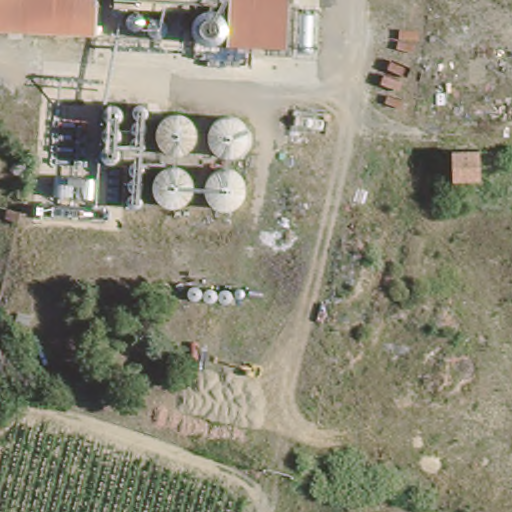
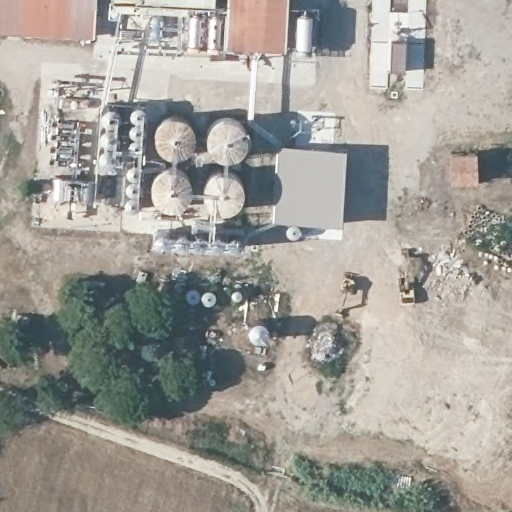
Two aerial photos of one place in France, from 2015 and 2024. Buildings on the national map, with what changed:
unchanged [(0,29),(0,0),(73,0),(70,32),(0,29)]
unchanged [(286,46),(226,42),(228,0),(249,0),(289,2),(286,46)]
unchanged [(249,0),(289,0),(289,2),(249,0)]
unchanged [(206,7),(211,9),(214,12),(217,16),(218,21),(219,26),(218,31),(216,35),(213,39),(209,42),(204,44),(199,44),(194,43),(190,41),(186,38),(183,34),(181,29),(181,24),(181,19),(184,15),(187,11),(191,8),(196,7),(201,6),(206,7)]
unchanged [(121,115),(121,120),(120,124),(116,128),(111,130),(107,129),(103,127),(99,123),(98,118),(99,111),(104,108),(108,106),(113,107),(118,110),(121,113),(119,113),(121,115)]
unchanged [(140,121),(138,121),(133,120),(131,117),(131,114),(131,111),(133,108),(136,107),(139,107),(143,109),(144,110),(144,112),(144,115),(143,118),(140,121)]
unchanged [(183,109),(193,119),(198,129),(196,138),(191,147),(181,149),(167,149),(160,146),(155,138),(153,132),(156,122),(164,112),(183,109)]
unchanged [(235,114),(246,121),(251,129),(251,136),(248,145),(241,152),(233,153),(223,152),(216,147),(211,140),(208,131),(210,125),(216,118),(235,114)]
unchanged [(143,134),(138,136),(134,136),(131,133),(129,128),(131,125),(133,122),(138,121),(142,122),(144,126),(145,130),(145,131),(143,134)]
unchanged [(109,178),(105,180),(99,181),(94,178),(91,174),(90,169),(90,166),(93,161),(97,158),(103,157),(99,155),(95,151),(94,146),(94,145),(95,140),(99,136),(104,134),(110,135),(114,138),(117,143),(118,148),(116,151),(113,155),(108,158),(105,158),(110,161),(113,166),(113,171),(113,173),(109,178)]
unchanged [(141,149),(138,152),(134,154),(130,154),(126,151),(125,147),(126,143),(129,140),(133,139),(138,140),(140,144),(141,148),(141,149)]
new [(278,144),(347,148),(343,226),(324,226),(274,222),(278,144)]
unchanged [(450,184),(451,155),(476,154),(474,183),(450,184)]
unchanged [(138,165),(136,168),(132,170),(128,170),(124,167),(123,162),(124,159),(127,156),(131,155),(135,156),(138,160),(138,164),(138,165)]
unchanged [(168,164),(176,163),(183,166),(191,172),(194,180),(193,188),(191,196),(171,201),(162,197),(157,193),(153,184),(154,177),(160,167),(168,164)]
unchanged [(224,166),(238,168),(246,174),(247,183),(246,194),(243,200),(232,205),(219,204),(208,198),(203,189),(206,178),(213,171),(224,166)]
unchanged [(138,184),(135,188),(131,189),(126,189),(123,186),(122,182),(123,178),(126,175),(130,174),(134,175),(137,179),(138,183),(138,184)]
unchanged [(138,200),(135,203),(131,205),(126,205),(123,202),(122,197),(123,194),(125,191),(130,190),(134,191),(137,194),(138,199),(138,200)]
unchanged [(4,224),(0,223),(0,213),(6,215),(4,224)]

